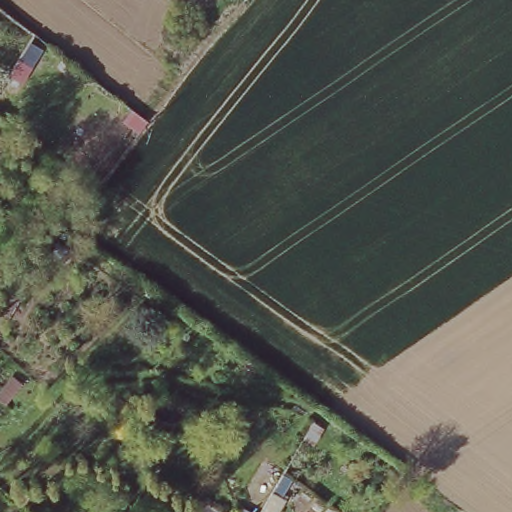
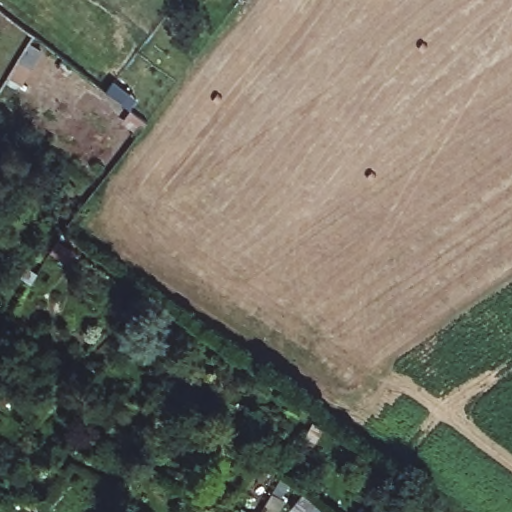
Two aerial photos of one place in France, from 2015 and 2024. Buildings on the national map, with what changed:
unchanged [(0,396),(0,390),(13,371),(20,377),(5,400),(0,396)]
unchanged [(187,512),(197,496),(220,510),(219,512),(187,512)]

